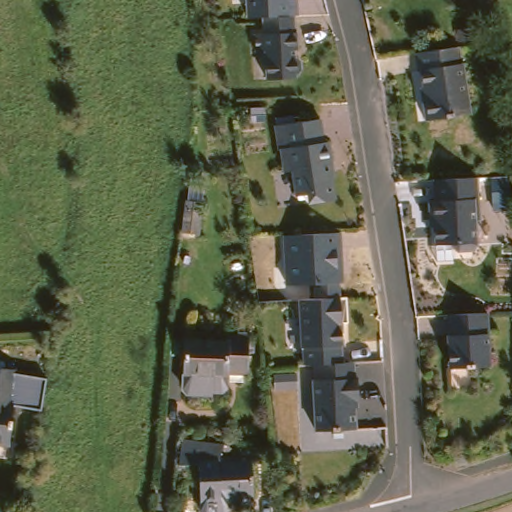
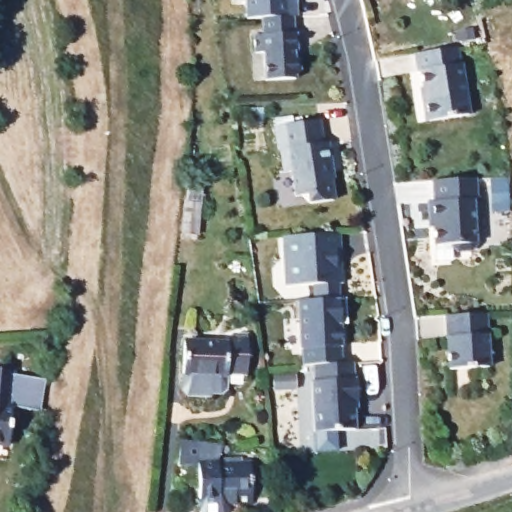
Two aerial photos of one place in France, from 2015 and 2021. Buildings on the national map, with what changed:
unchanged [(237,0),(287,0),(288,11),(239,15),(237,0)]
unchanged [(285,31),(288,30),(289,47),(285,48),(285,54),(287,74),(287,77),(257,79),(255,51),(246,52),(245,34),(254,32),(253,16),(284,14),(285,31)]
unchanged [(455,51),(457,67),(459,67),(467,117),(423,124),(419,101),(422,101),(418,75),(415,75),(412,57),(455,51)]
unchanged [(318,145),(323,145),(327,167),(324,167),(330,202),(307,206),(306,197),(292,199),(288,174),(279,175),(276,153),(274,154),(270,129),(271,129),(270,124),(287,121),(288,126),(314,122),(318,145)]
unchanged [(466,182),(469,182),(472,223),(468,224),(470,249),(465,254),(451,255),(446,251),(445,248),(429,249),(427,224),(423,224),(422,206),(428,205),(427,184),(466,182)]
unchanged [(315,285),(285,286),(283,237),(341,234),(345,284),(340,285),(339,301),(316,302),(315,285)]
unchanged [(342,301),(343,327),(337,327),(338,350),(296,352),(294,303),(342,301)]
unchanged [(454,320),(483,317),(488,371),(448,374),(443,321),(454,320)]
unchanged [(225,386),(216,385),(215,388),(191,387),(187,382),(188,367),(190,333),(218,335),(218,326),(240,327),(243,328),(242,363),(230,363),(230,367),(229,382),(225,386)]
unchanged [(12,372),(43,378),(36,410),(11,404),(7,443),(0,443),(0,367),(13,368),(12,372)]
unchanged [(337,367),(349,367),(350,382),(352,382),(353,405),(349,405),(350,433),(309,435),(307,384),(310,384),(309,368),(337,367)]
unchanged [(182,482),(184,455),(232,458),(227,483),(254,484),(253,512),(204,512),(206,482),(182,482)]

